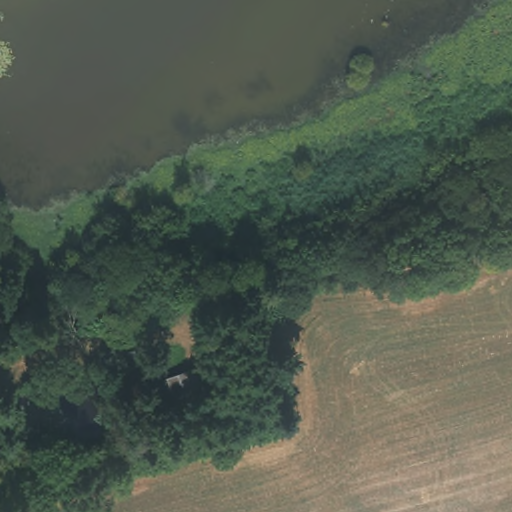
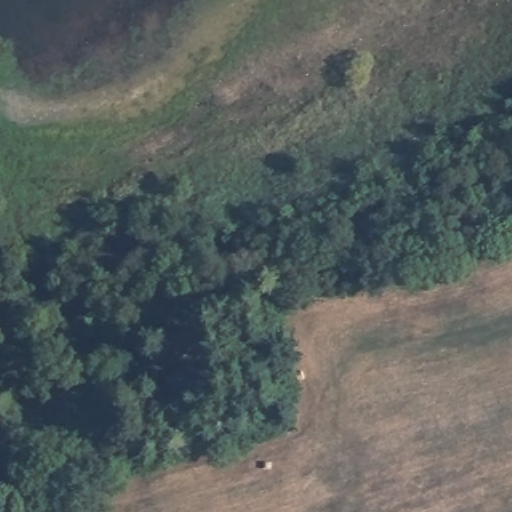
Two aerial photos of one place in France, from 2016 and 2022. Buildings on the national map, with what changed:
unchanged [(165,384),(181,379),(196,373),(205,401),(173,410),(165,384)]

